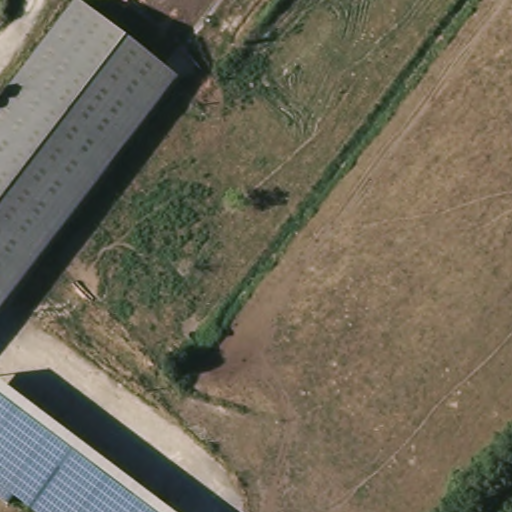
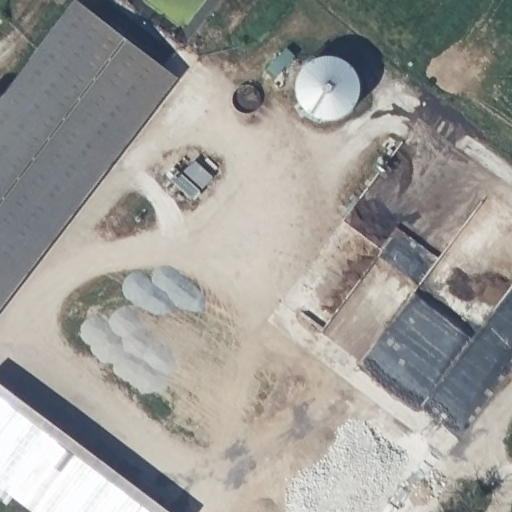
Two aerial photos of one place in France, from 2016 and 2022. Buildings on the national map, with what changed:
unchanged [(0,312),(0,131),(92,11),(179,78),(0,312)]
new [(338,58),(347,63),(351,66),(354,69),(358,78),(360,88),(358,97),(354,106),(351,110),(343,116),(333,119),(329,119),(324,119),(315,116),(307,110),(301,102),(298,93),(298,88),(298,83),(301,74),(307,66),(310,63),(319,58),(329,57),(338,58)]
unchanged [(172,512),(35,512),(0,486),(0,382),(172,512)]

